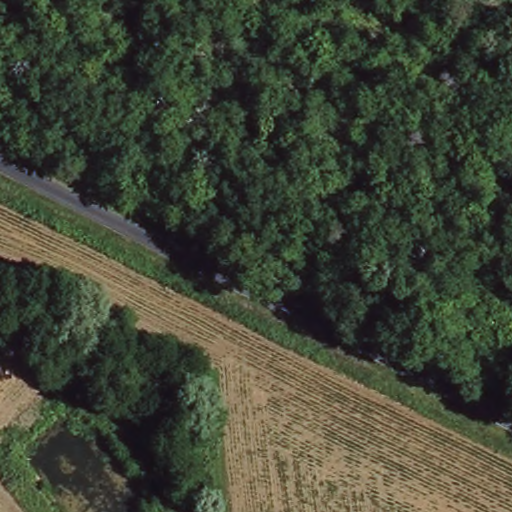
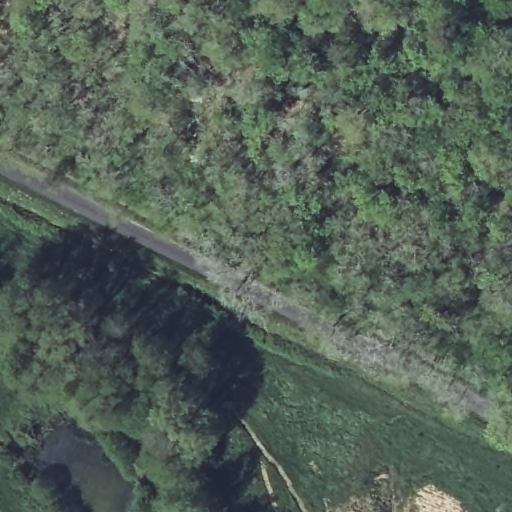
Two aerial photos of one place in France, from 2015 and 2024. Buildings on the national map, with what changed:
[]

